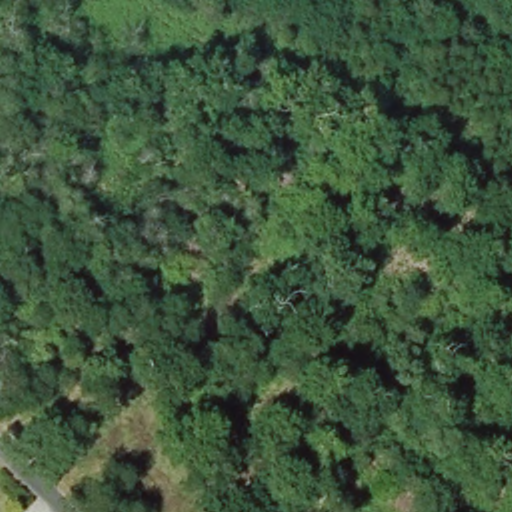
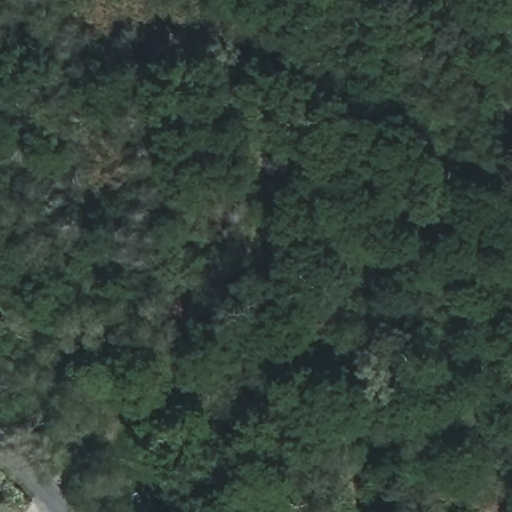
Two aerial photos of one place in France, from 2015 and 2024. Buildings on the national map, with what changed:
[]

